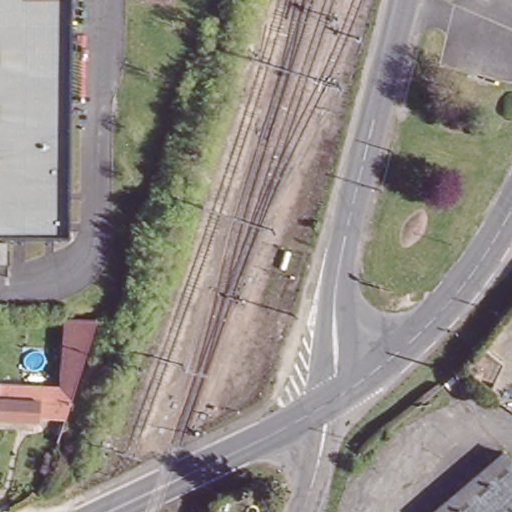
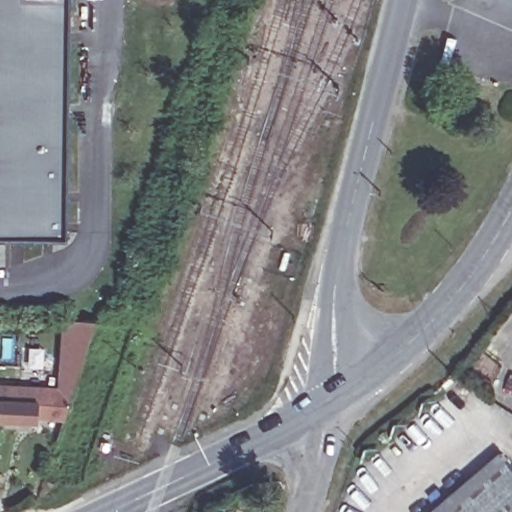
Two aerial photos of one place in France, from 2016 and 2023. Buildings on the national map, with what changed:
unchanged [(67,234),(0,234),(0,0),(68,0),(67,234)]
unchanged [(79,383),(59,382),(61,318),(94,319),(79,383)]
unchanged [(67,415),(40,413),(39,419),(3,417),(6,380),(79,383),(67,415)]
unchanged [(512,466),(512,512),(440,512),(503,456),(512,466)]

